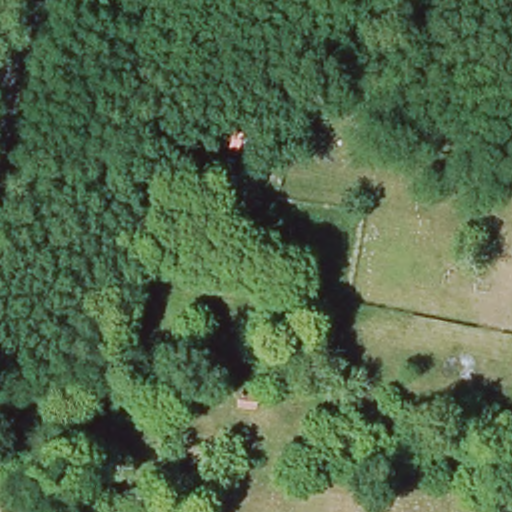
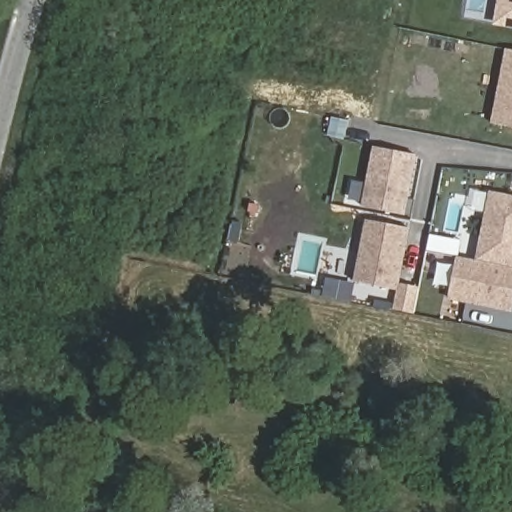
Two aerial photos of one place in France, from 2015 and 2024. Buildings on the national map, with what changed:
new [(498,0),(512,0),(512,29),(493,25),(498,0)]
new [(505,49),(512,51),(512,128),(491,123),(505,49)]
new [(376,147),(417,155),(411,186),(408,185),(406,191),(408,197),(405,215),(364,206),(376,147)]
new [(512,266),(476,258),(475,258),(490,191),(512,196),(512,266)]
new [(367,220),(409,229),(403,260),(400,259),(398,265),(400,271),(396,290),(355,281),(367,220)]
new [(512,266),(512,305),(511,309),(479,303),(479,300),(472,298),(466,300),(449,297),(458,255),(512,266)]
unchanged [(253,407),(238,406),(239,394),(255,396),(253,407)]

